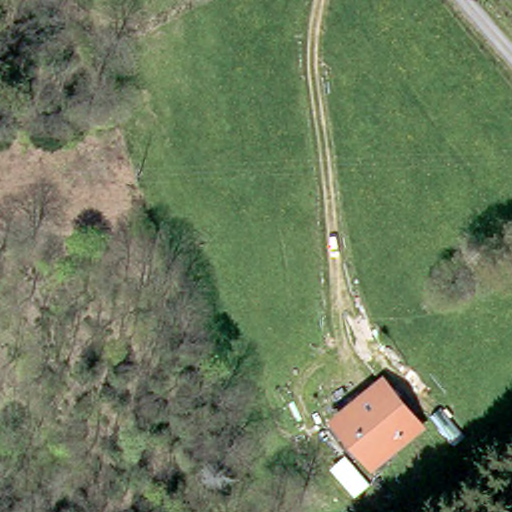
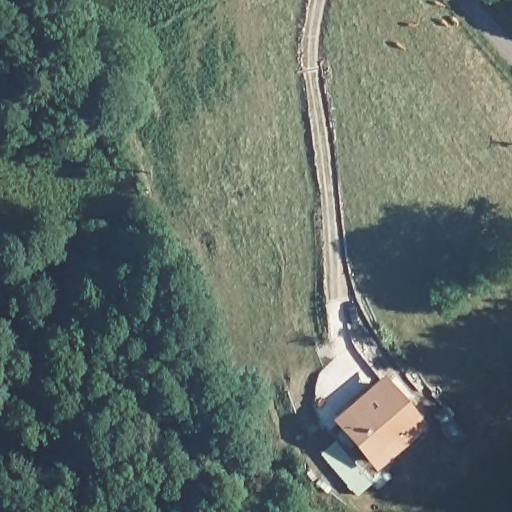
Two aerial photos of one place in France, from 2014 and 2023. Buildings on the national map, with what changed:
unchanged [(339,414),(379,379),(414,421),(373,456),(339,414)]

